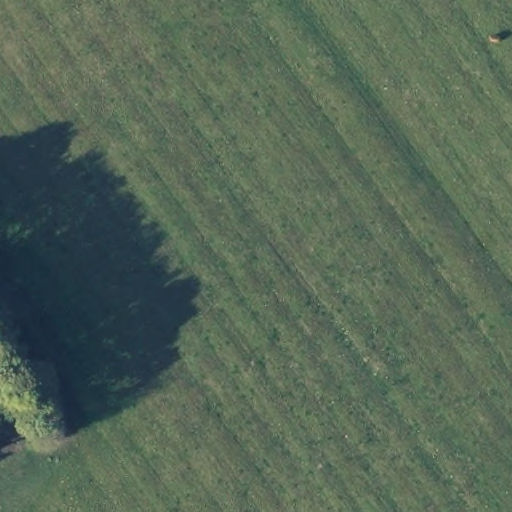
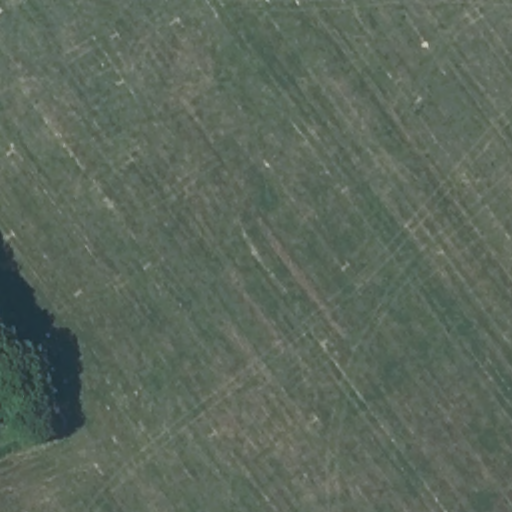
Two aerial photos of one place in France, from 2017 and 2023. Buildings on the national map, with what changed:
[]

